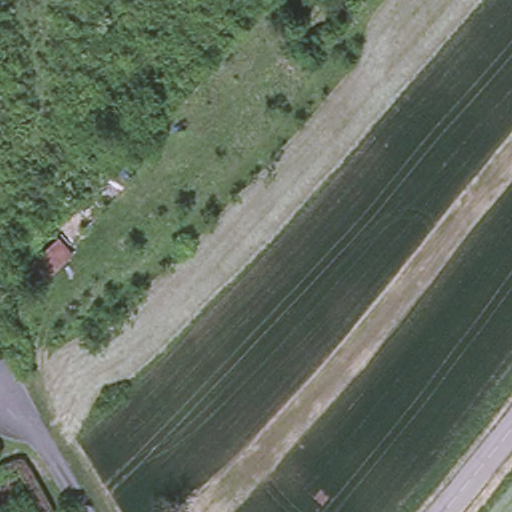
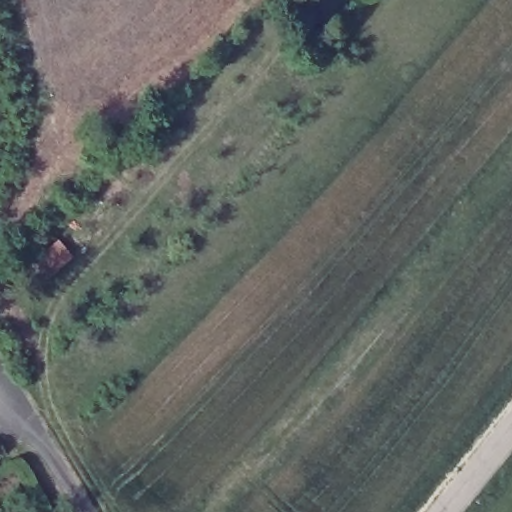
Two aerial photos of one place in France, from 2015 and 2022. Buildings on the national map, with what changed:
unchanged [(38,292),(23,272),(62,241),(77,258),(38,292)]

